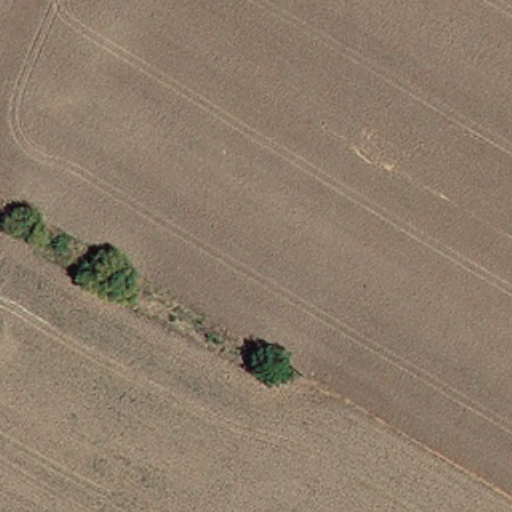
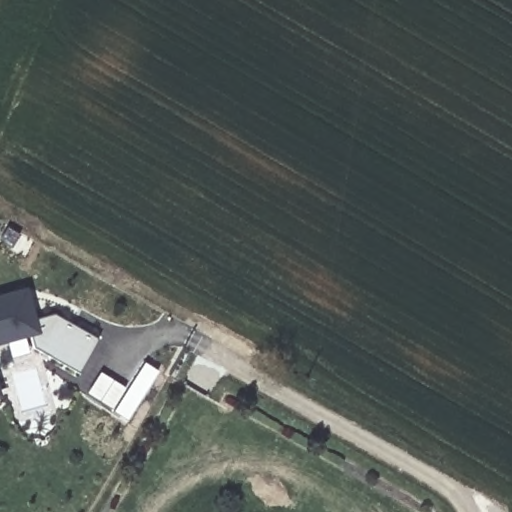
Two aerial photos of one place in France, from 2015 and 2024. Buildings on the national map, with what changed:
new [(0,345),(0,295),(27,288),(36,321),(52,316),(96,341),(79,374),(34,348),(31,337),(0,345)]
new [(0,397),(0,395),(1,397),(0,397)]

